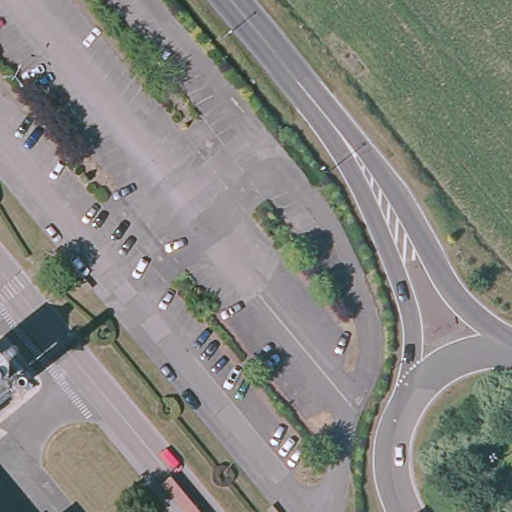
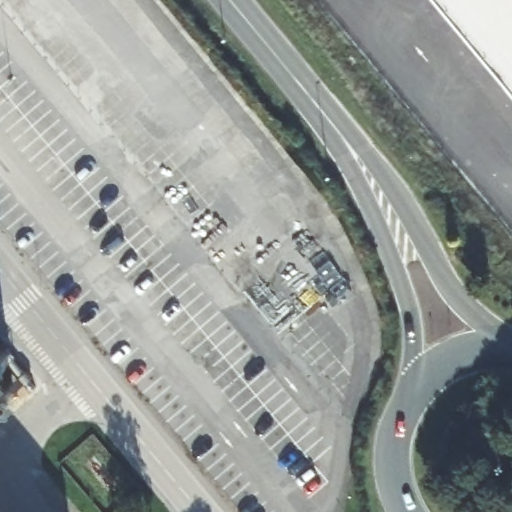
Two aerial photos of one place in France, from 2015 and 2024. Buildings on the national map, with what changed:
new [(428,0),(512,0),(512,103),(428,0)]
new [(19,391),(6,402),(0,396),(0,368),(2,370),(19,391)]

